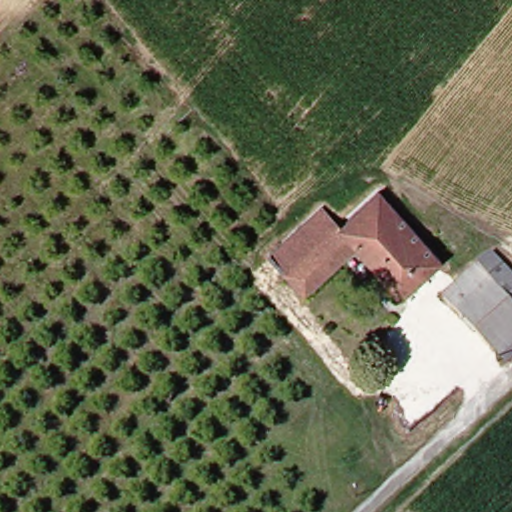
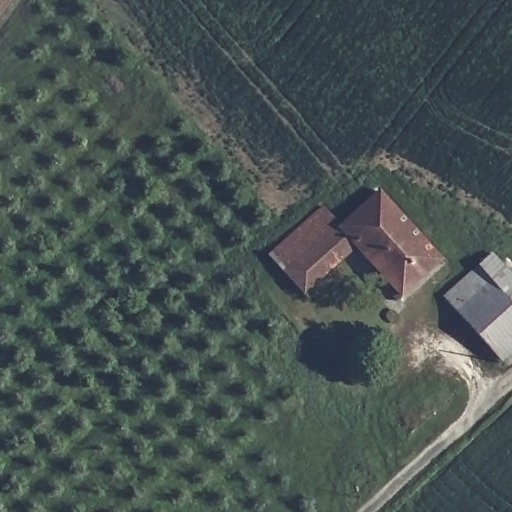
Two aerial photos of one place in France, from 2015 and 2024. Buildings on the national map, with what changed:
unchanged [(310,293),(294,272),(285,261),(277,251),(313,223),(337,205),(342,211),(353,225),(393,195),(396,192),(462,265),(460,267),(455,262),(410,298),(369,250),(310,293)]
unchanged [(493,261),(510,274),(468,313),(452,299),(493,261)]
unchanged [(512,358),(468,313),(510,274),(512,271),(512,358)]

